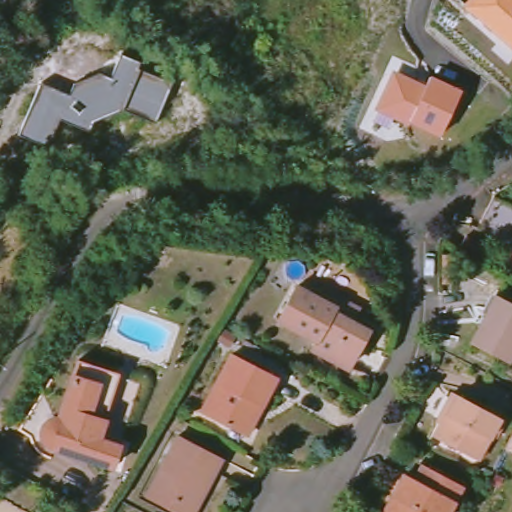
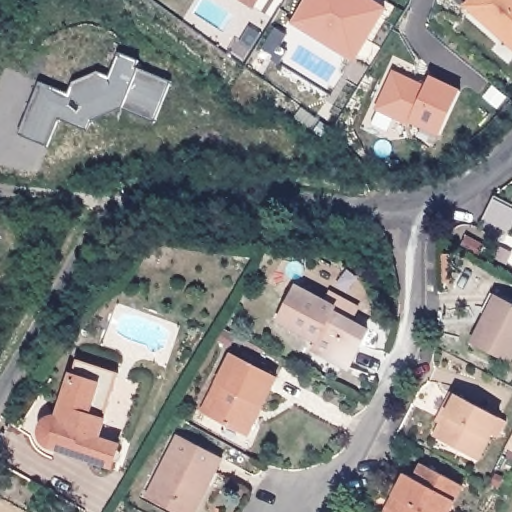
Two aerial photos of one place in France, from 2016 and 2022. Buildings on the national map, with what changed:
new [(242,0),(257,0),(253,7),(242,0)]
new [(385,10),(354,61),(293,24),(308,0),(370,0),(385,10)]
unchanged [(512,49),(459,6),(464,0),(512,0),(512,49)]
unchanged [(143,62),(140,71),(169,81),(153,117),(122,104),(120,109),(91,115),(88,127),(60,119),(50,145),(18,136),(41,83),(66,94),(71,86),(98,73),(110,76),(120,53),(143,62)]
unchanged [(427,86),(431,75),(461,91),(440,139),(375,113),(392,72),(427,86)]
unchanged [(512,205),(512,226),(508,234),(480,221),(493,197),(512,205)]
unchanged [(308,344),(312,336),(275,316),(292,283),(321,299),(327,289),(345,298),(338,312),(363,325),(342,363),(308,344)]
unchanged [(497,291),(512,299),(512,349),(508,357),(473,338),(497,291)]
unchanged [(50,440),(45,437),(43,434),(42,432),(42,428),(42,425),(43,421),(46,417),(51,413),(55,412),(59,413),(77,354),(118,368),(97,434),(118,440),(111,460),(50,440)]
unchanged [(203,411),(231,355),(275,377),(260,406),(255,404),(241,431),(203,411)]
unchanged [(435,436),(457,396),(498,418),(477,458),(435,436)]
new [(512,452),(504,449),(512,432),(512,452)]
unchanged [(177,436),(215,456),(202,482),(207,485),(193,512),(176,512),(146,497),(177,436)]
unchanged [(415,479),(422,465),(461,486),(447,512),(386,512),(405,475),(415,479)]

